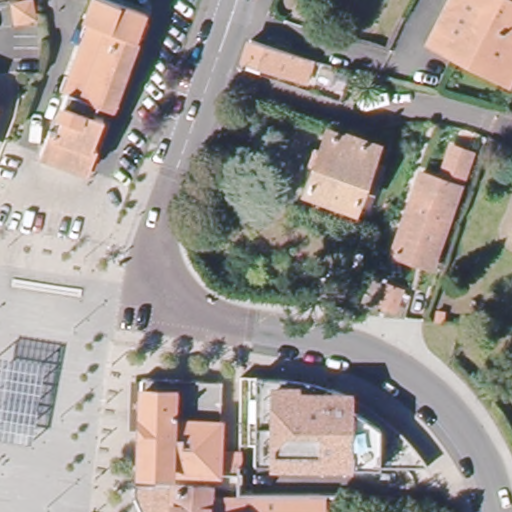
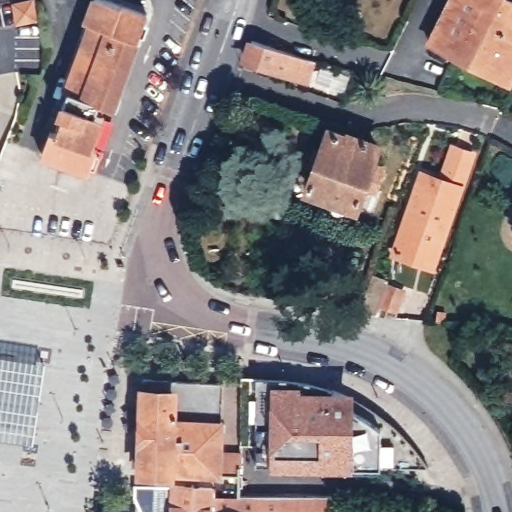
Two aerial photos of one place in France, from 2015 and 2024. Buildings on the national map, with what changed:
unchanged [(93,146),(99,148),(88,177),(39,158),(48,135),(51,136),(52,133),(56,134),(62,119),(57,117),(64,97),(61,96),(89,24),(83,22),(92,0),(131,0),(146,5),(107,112),(105,111),(102,121),(93,146)]
unchanged [(478,63),(455,51),(430,38),(450,0),(512,0),(512,68),(511,68),(505,78),(478,63)]
unchanged [(25,4),(29,21),(10,25),(7,8),(25,4)]
unchanged [(315,58),(307,82),(244,61),(252,39),(259,42),(315,58)]
unchanged [(364,205),(350,199),(349,202),(302,185),(323,130),(340,136),(341,133),(371,143),(366,156),(377,160),(372,170),(367,186),(370,188),(364,205)]
unchanged [(421,267),(391,257),(418,176),(441,184),(453,151),(469,158),(437,252),(431,271),(421,267)]
unchanged [(399,289),(393,308),(381,303),(387,285),(399,289)]
unchanged [(33,442),(0,438),(0,354),(46,361),(33,442)]
unchanged [(138,469),(143,377),(222,383),(218,456),(239,457),(238,477),(138,469)]
unchanged [(280,384),(311,388),(325,392),(341,396),(354,403),(372,415),(385,426),(399,440),(414,459),(424,474),(427,483),(255,469),(256,449),(240,447),(238,384),(238,380),(280,384)]
unchanged [(140,477),(142,477),(220,483),(219,489),(241,490),(352,499),(352,512),(329,512),(329,505),(317,504),(317,512),(149,512),(140,488),(140,477)]

